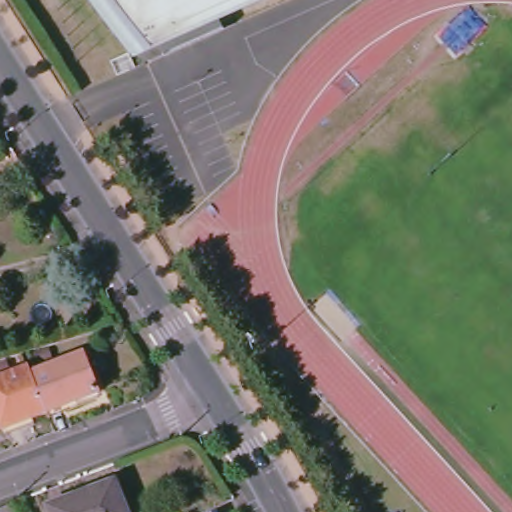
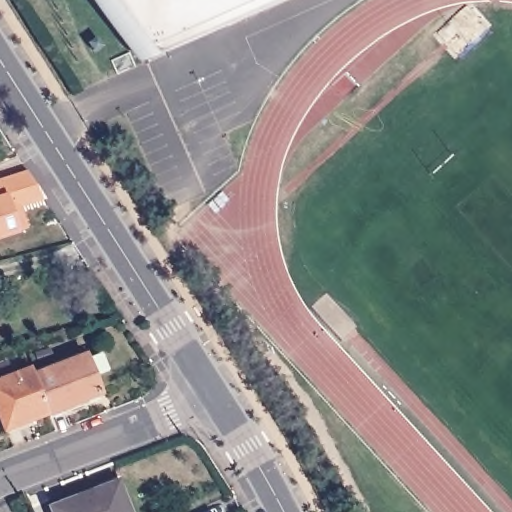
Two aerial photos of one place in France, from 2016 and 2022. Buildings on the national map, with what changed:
unchanged [(110,25),(94,0),(266,0),(136,57),(110,25)]
new [(0,237),(0,178),(25,170),(43,197),(16,206),(19,214),(24,229),(0,237)]
unchanged [(48,413),(33,375),(88,355),(102,392),(48,413)]
unchanged [(48,413),(31,420),(29,415),(20,418),(22,423),(4,430),(0,419),(0,380),(30,368),(33,375),(48,413)]
unchanged [(128,512),(51,512),(49,508),(116,482),(128,512)]

